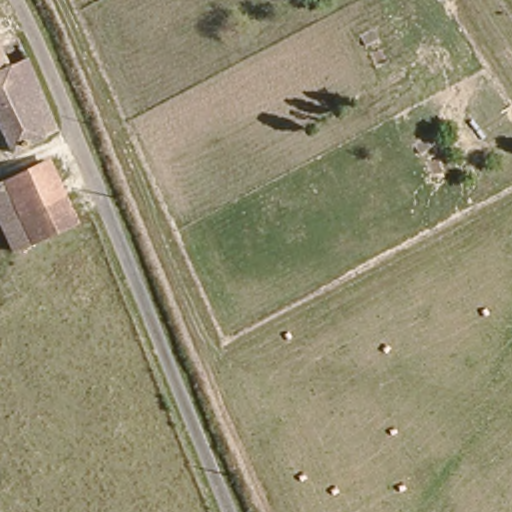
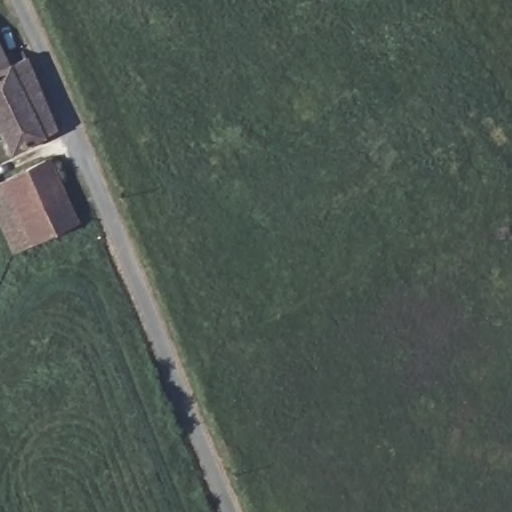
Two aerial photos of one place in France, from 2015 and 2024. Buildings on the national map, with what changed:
unchanged [(2,61),(20,54),(51,125),(5,145),(0,136),(0,57),(2,61)]
unchanged [(0,224),(0,183),(44,161),(71,224),(14,251),(0,224)]

